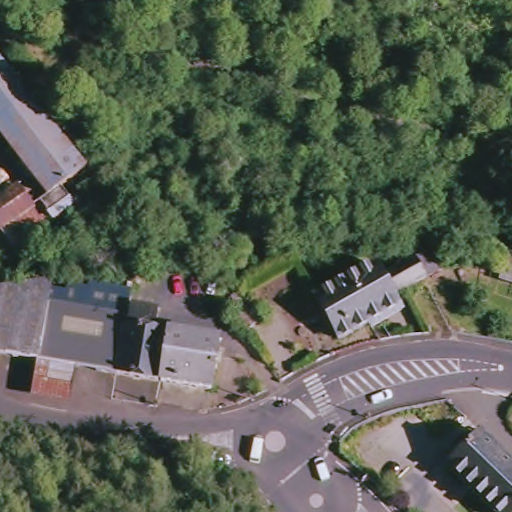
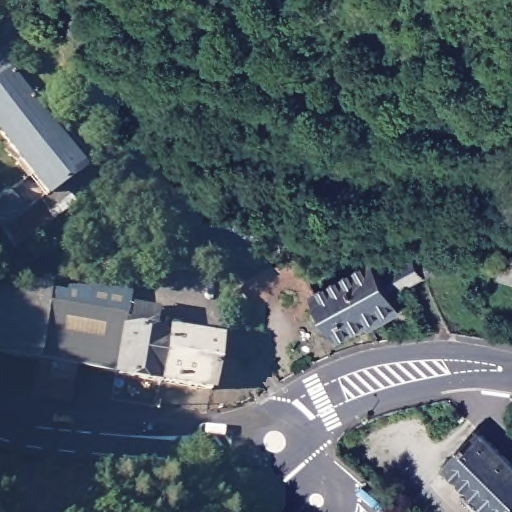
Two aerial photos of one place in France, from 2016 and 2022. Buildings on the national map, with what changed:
unchanged [(0,23),(0,12),(11,0),(15,0),(48,32),(28,51),(0,23)]
unchanged [(0,130),(0,54),(90,172),(83,178),(96,197),(20,254),(6,235),(0,239),(0,206),(38,179),(0,130)]
unchanged [(406,290),(392,296),(399,307),(371,323),(339,340),(316,297),(374,264),(381,275),(426,252),(442,247),(451,263),(437,271),(419,281),(406,290)]
unchanged [(512,260),(512,284),(497,278),(505,257),(512,260)]
unchanged [(95,288),(91,310),(58,306),(55,317),(0,308),(0,291),(53,286),(95,288)]
unchanged [(62,365),(42,361),(0,354),(0,308),(55,317),(58,306),(91,310),(95,288),(95,286),(132,292),(136,292),(131,328),(128,328),(121,374),(81,368),(62,365)]
unchanged [(223,305),(238,290),(259,320),(244,333),(223,305)]
unchanged [(128,328),(131,328),(135,329),(138,309),(161,312),(158,334),(172,336),(173,334),(181,335),(174,383),(121,374),(128,328)]
unchanged [(223,342),(217,391),(174,383),(181,335),(223,342)]
unchanged [(62,365),(81,368),(78,384),(75,405),(36,398),(39,376),(42,361),(62,365)]
unchanged [(454,463),(487,433),(512,458),(512,512),(500,512),(454,463)]

